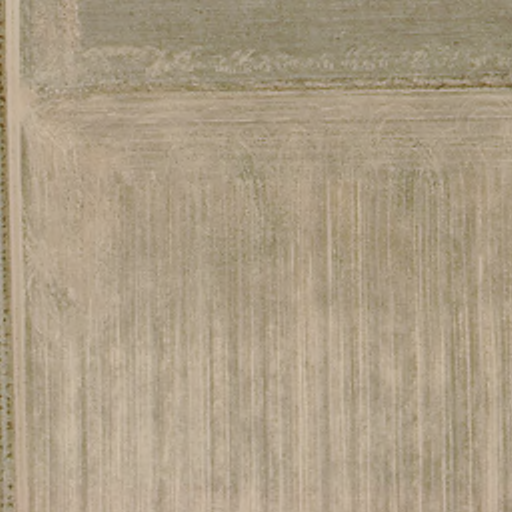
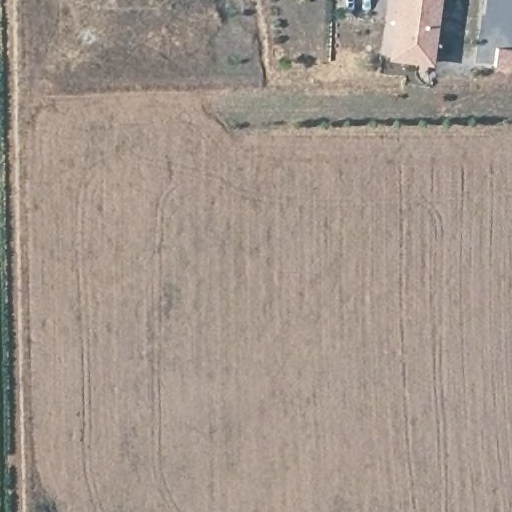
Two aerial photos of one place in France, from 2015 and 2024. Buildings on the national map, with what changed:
new [(432,65),(389,61),(397,0),(440,0),(432,65)]
new [(498,47),(512,49),(512,67),(496,66),(498,47)]

